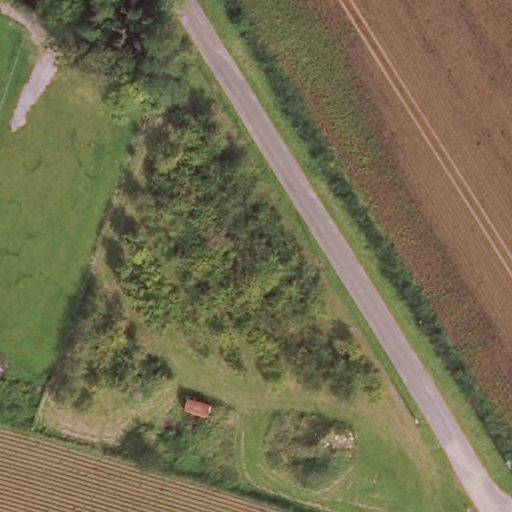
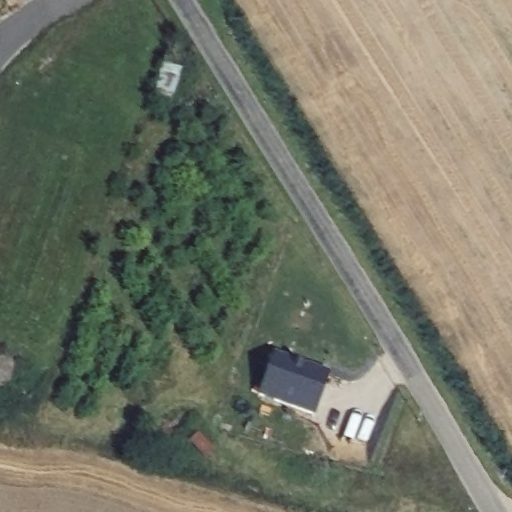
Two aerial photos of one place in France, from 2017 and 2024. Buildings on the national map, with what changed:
unchanged [(164,70),(180,77),(167,109),(151,101),(164,70)]
new [(330,370),(314,415),(257,397),(272,353),(330,370)]

